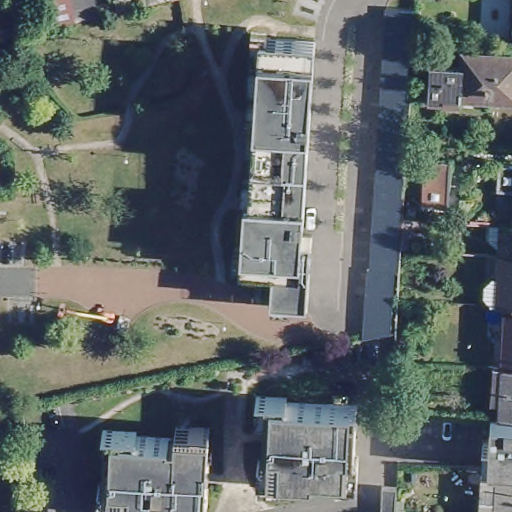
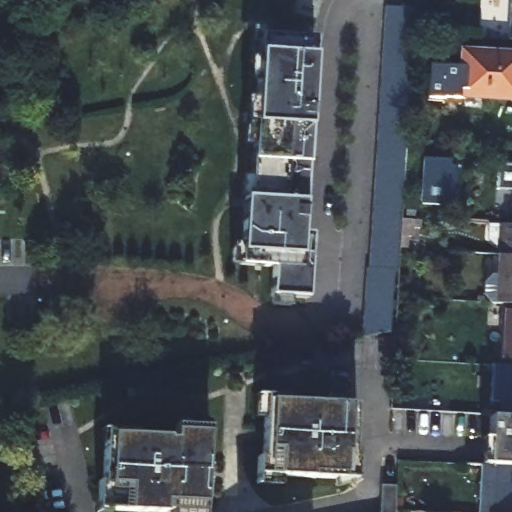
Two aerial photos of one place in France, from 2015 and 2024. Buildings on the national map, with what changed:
unchanged [(50,14),(58,11),(56,0),(70,0),(75,17),(70,18),(67,19),(52,22),(50,14)]
unchanged [(76,0),(95,0),(98,11),(79,16),(76,0)]
unchanged [(369,265),(371,265),(388,2),(417,4),(400,265),(397,265),(395,329),(367,335),(369,265)]
unchanged [(511,30),(512,13),(512,30),(511,30)]
unchanged [(313,55),(309,129),(307,164),(304,201),(302,235),(311,235),(307,299),(270,297),(272,268),(240,267),(233,267),(253,29),(268,29),(268,36),(315,38),(313,55)]
unchanged [(461,70),(462,57),(467,57),(467,50),(483,51),(483,58),(512,60),(512,101),(460,97),(459,105),(427,103),(429,69),(461,70)]
unchanged [(422,189),(422,179),(423,174),(424,156),(448,159),(447,203),(421,201),(422,189)]
unchanged [(495,192),(497,166),(512,167),(512,193),(495,192)]
unchanged [(0,187),(0,170),(1,187),(0,187)]
unchanged [(498,227),(512,227),(512,260),(497,258),(496,258),(498,227)]
unchanged [(484,300),(485,287),(496,277),(497,258),(512,260),(512,309),(490,307),(484,300)]
unchanged [(512,309),(512,344),(485,342),(487,307),(490,307),(512,309)]
unchanged [(485,368),(485,342),(512,344),(512,370),(500,369),(485,368)]
unchanged [(512,370),(512,420),(497,420),(500,369),(512,370)]
unchanged [(255,397),(285,398),(285,401),(350,405),(357,404),(357,477),(347,476),(313,474),(313,480),(283,476),(281,485),(255,485),(256,477),(256,459),(263,459),(264,417),(255,419),(255,397)]
unchanged [(492,470),(485,469),(478,468),(480,440),(489,440),(490,419),(497,420),(512,420),(512,471),(492,470)]
unchanged [(175,438),(175,430),(175,426),(209,428),(209,432),(207,501),(206,512),(171,512),(171,510),(165,510),(165,512),(130,512),(130,508),(97,510),(98,482),(105,483),(107,431),(135,431),(135,435),(175,438)]
unchanged [(492,470),(512,471),(512,512),(475,512),(478,468),(492,470)]
unchanged [(397,486),(395,512),(382,512),(382,486),(397,486)]

